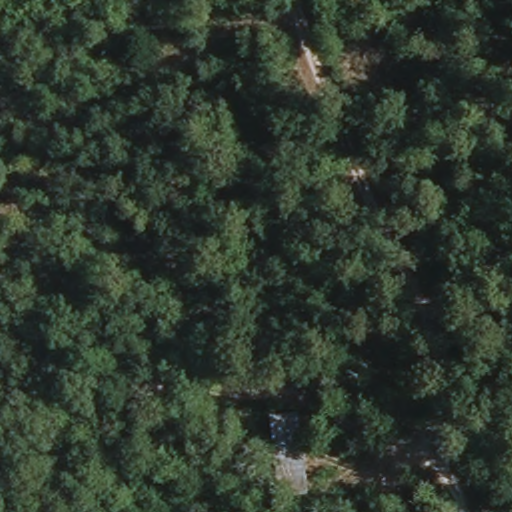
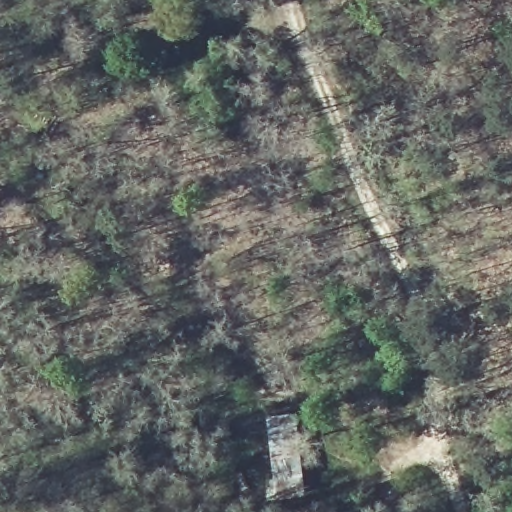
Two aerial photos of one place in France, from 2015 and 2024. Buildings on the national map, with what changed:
unchanged [(274,461),(270,414),(301,413),(305,458),(274,461)]

